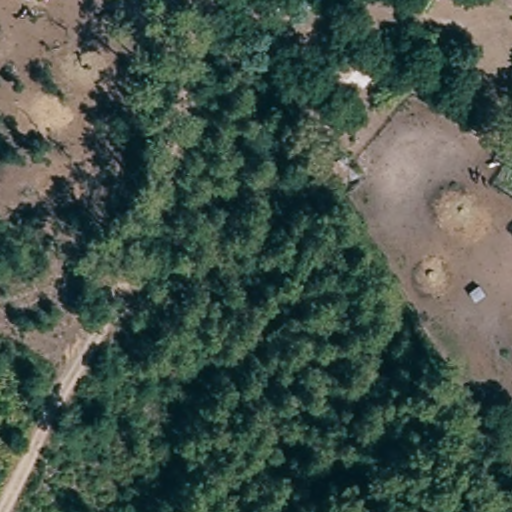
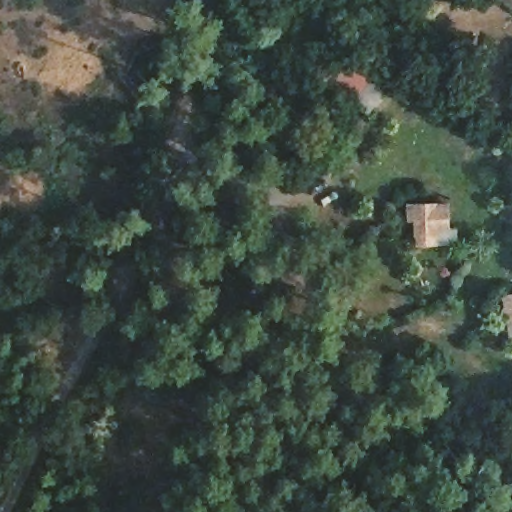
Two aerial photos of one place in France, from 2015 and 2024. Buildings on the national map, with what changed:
new [(512,134),(512,135),(511,135),(512,134)]
new [(451,201),(452,229),(440,229),(440,246),(415,246),(413,222),(407,222),(407,202),(451,201)]
new [(512,324),(507,325),(503,295),(512,293),(512,324)]

